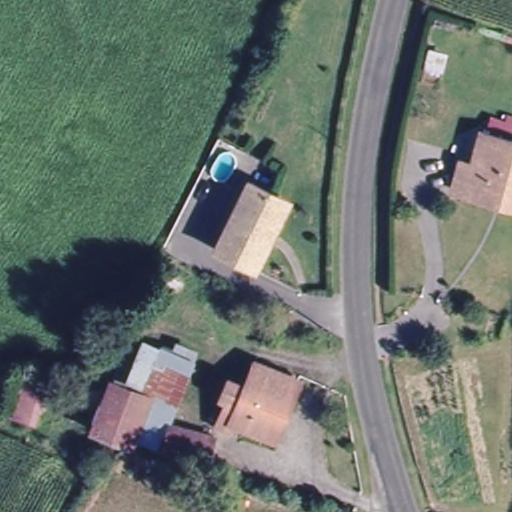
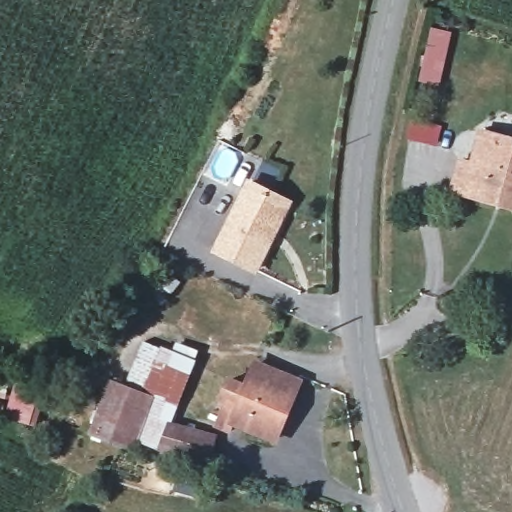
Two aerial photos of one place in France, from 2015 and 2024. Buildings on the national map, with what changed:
unchanged [(429,47),(446,51),(434,87),(416,81),(429,47)]
unchanged [(451,185),(459,157),(476,164),(485,131),(512,139),(512,205),(451,185)]
unchanged [(214,249),(245,182),(270,193),(288,202),(282,219),(258,271),(214,249)]
unchanged [(162,426),(203,448),(193,467),(144,448),(133,438),(150,403),(120,389),(141,343),(191,370),(162,426)]
unchanged [(265,441),(230,421),(223,432),(210,422),(224,402),(215,397),(224,381),(235,387),(249,367),(292,392),(265,441)]
unchanged [(42,385),(34,422),(3,415),(15,377),(42,385)]
unchanged [(121,444),(89,427),(106,390),(139,406),(121,444)]

